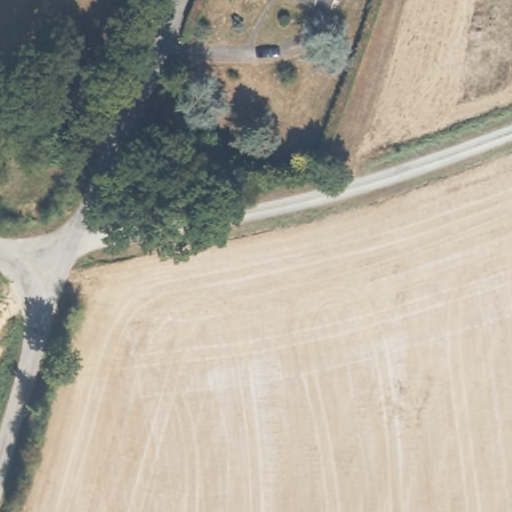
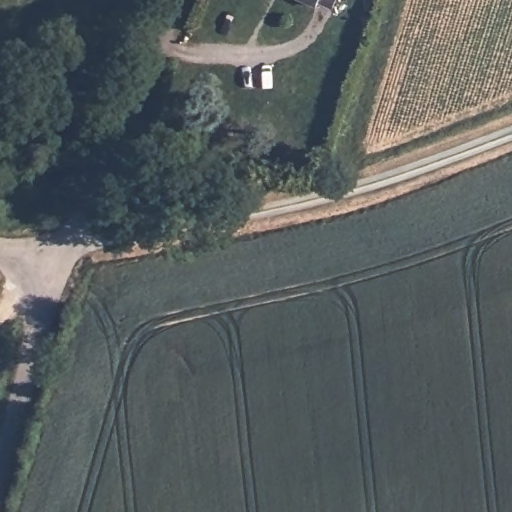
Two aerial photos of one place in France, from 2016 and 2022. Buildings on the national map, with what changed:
unchanged [(331,13),(302,0),(337,0),(331,13)]

